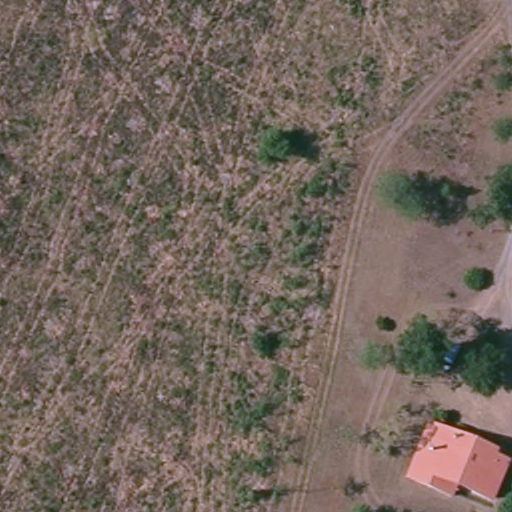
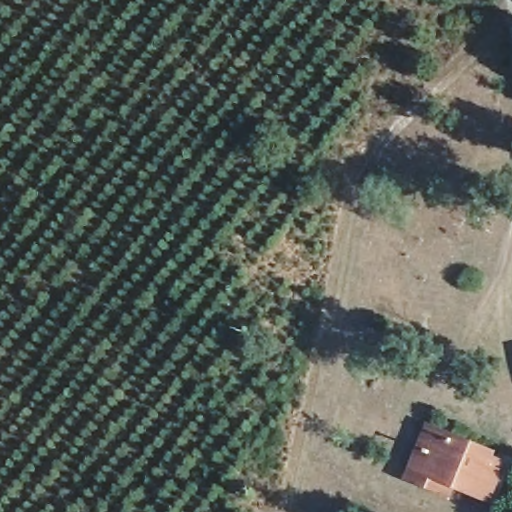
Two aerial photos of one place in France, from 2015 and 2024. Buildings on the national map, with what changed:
unchanged [(401,482),(406,471),(421,437),(440,442),(442,437),(481,450),(480,459),(491,465),(481,498),(445,485),(441,496),(401,482)]

